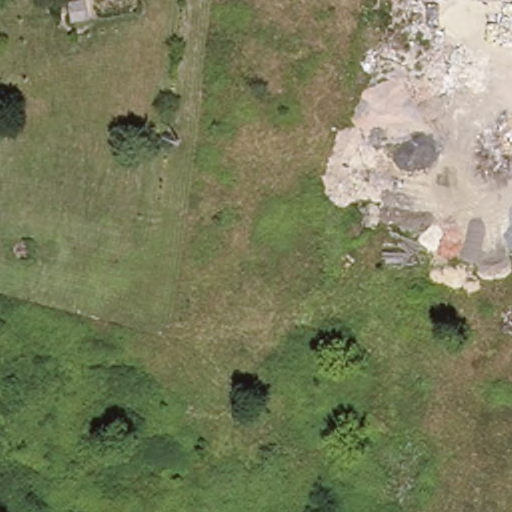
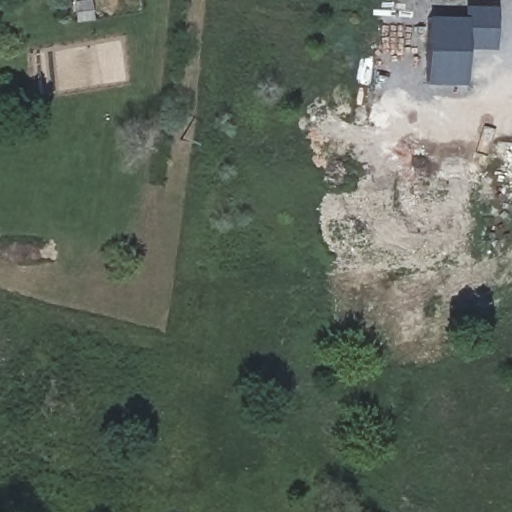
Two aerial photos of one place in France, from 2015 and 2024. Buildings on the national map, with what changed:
new [(464,6),(494,7),(493,51),(463,51),(461,84),(424,82),(428,17),(464,18),(464,6)]

